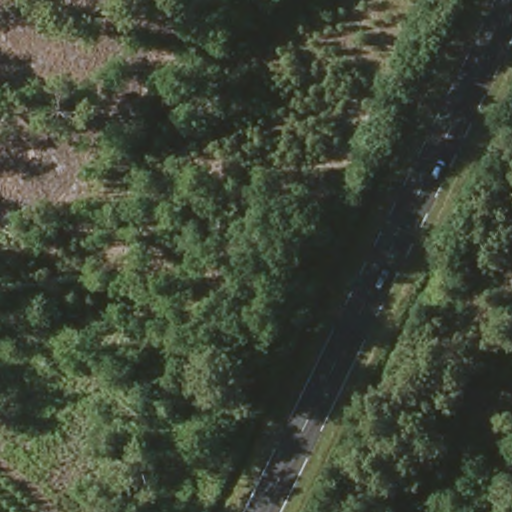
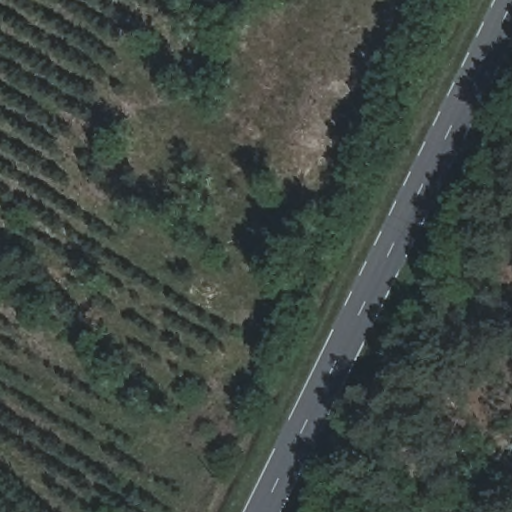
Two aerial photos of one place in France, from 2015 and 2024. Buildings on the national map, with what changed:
unchanged [(446,306),(470,314),(479,302),(493,310),(470,346),(435,330),(446,306)]

